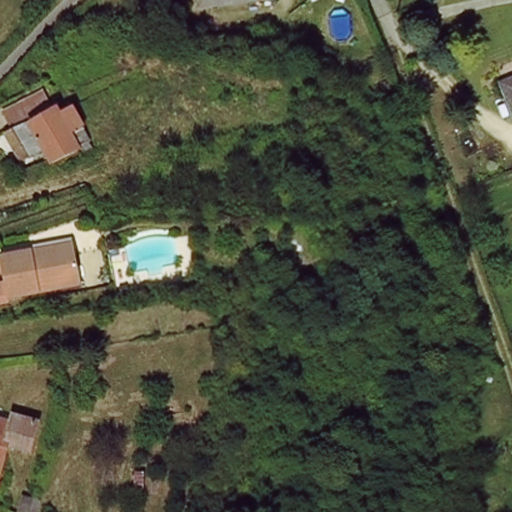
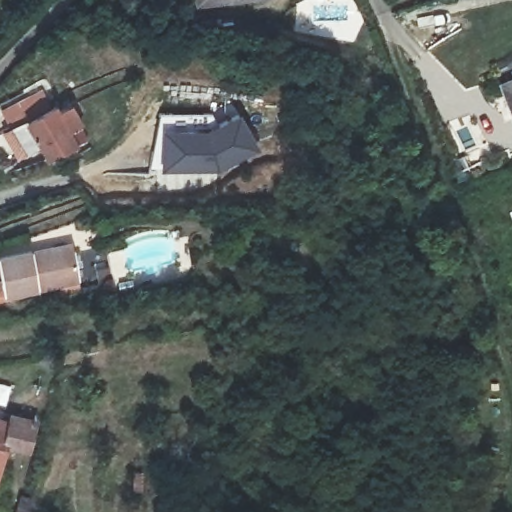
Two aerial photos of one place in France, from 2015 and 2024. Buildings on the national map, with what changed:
unchanged [(239,0),(207,4),(200,5),(200,0),(239,0)]
unchanged [(505,86),(512,84),(512,103),(505,86)]
unchanged [(85,148),(57,166),(45,148),(30,156),(22,146),(37,135),(30,123),(12,130),(3,112),(42,91),(52,109),(58,106),(70,126),(85,148)]
new [(219,174),(162,174),(162,129),(212,129),(240,113),(260,150),(219,174)]
unchanged [(0,263),(0,255),(32,249),(73,240),(75,247),(81,278),(81,279),(60,283),(7,294),(7,297),(8,300),(0,302),(0,283),(4,282),(0,263)]
unchanged [(12,405),(28,409),(35,411),(29,434),(22,432),(7,429),(0,454),(0,416),(9,418),(12,405)]
unchanged [(27,509),(26,512),(0,512),(0,502),(12,505),(27,509)]

